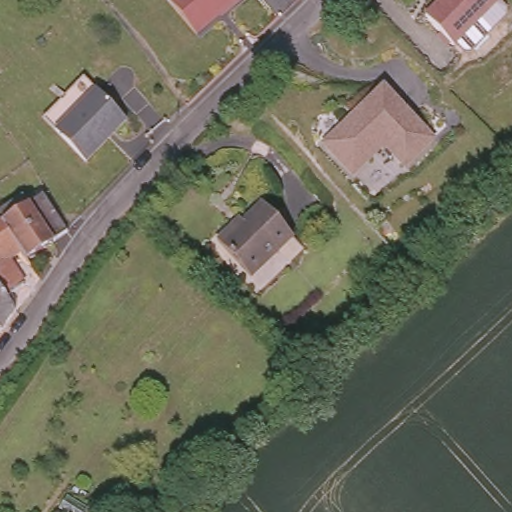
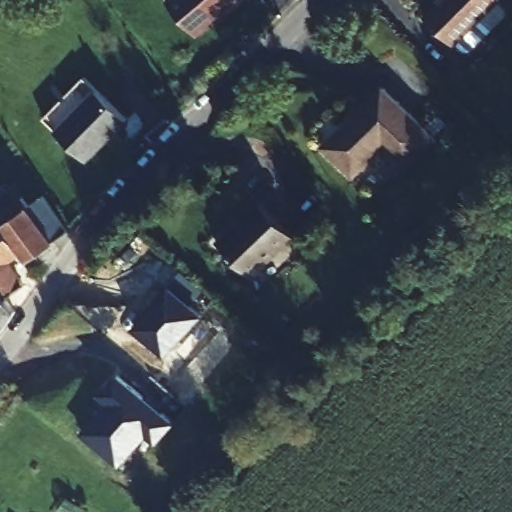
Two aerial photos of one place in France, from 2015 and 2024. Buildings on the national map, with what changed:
unchanged [(170,0),(233,0),(195,32),(170,0)]
unchanged [(503,0),(460,46),(430,17),(446,0),(503,0)]
unchanged [(387,82),(435,136),(405,162),(385,140),(352,169),(325,137),(387,82)]
unchanged [(92,88),(125,118),(84,160),(52,131),(92,88)]
unchanged [(29,194),(34,190),(57,225),(52,229),(45,234),(19,253),(13,245),(1,253),(20,281),(0,294),(0,214),(21,199),(29,194)]
unchanged [(244,273),(211,239),(228,222),(231,225),(252,204),(283,235),(244,273)]
new [(203,315),(166,354),(134,327),(170,287),(203,315)]
unchanged [(0,317),(0,294),(8,306),(0,317)]
new [(175,423),(159,442),(149,433),(119,467),(82,433),(110,402),(99,393),(118,372),(175,423)]

